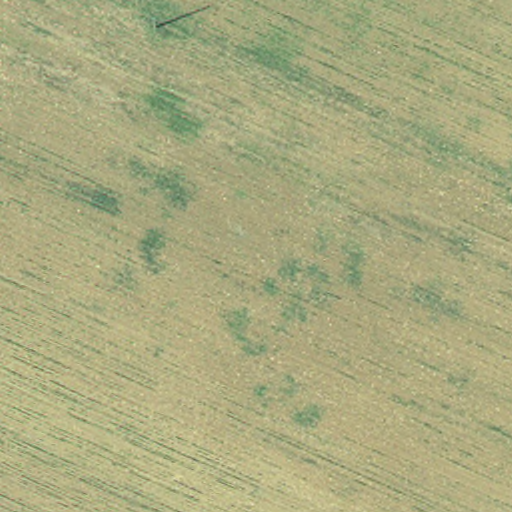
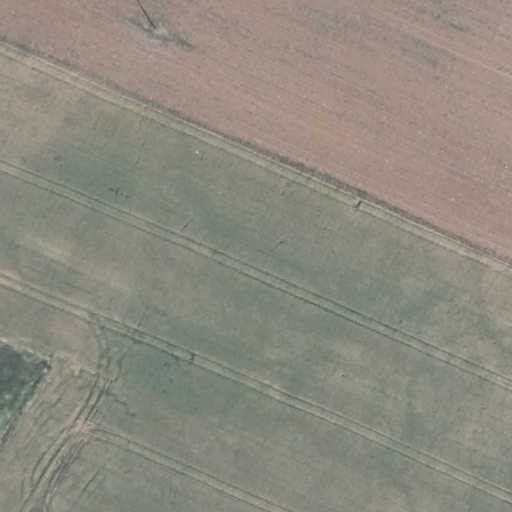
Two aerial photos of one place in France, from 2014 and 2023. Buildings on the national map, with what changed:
[]

